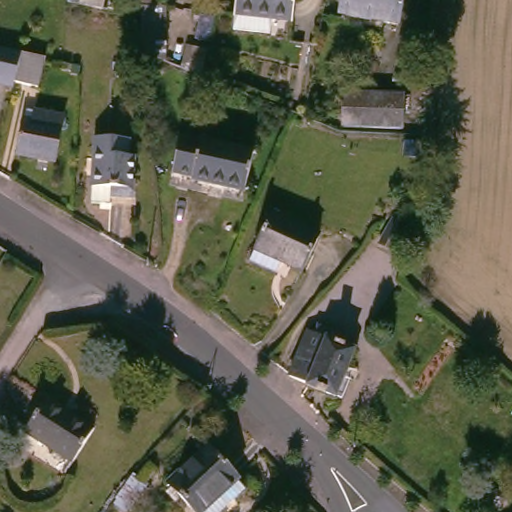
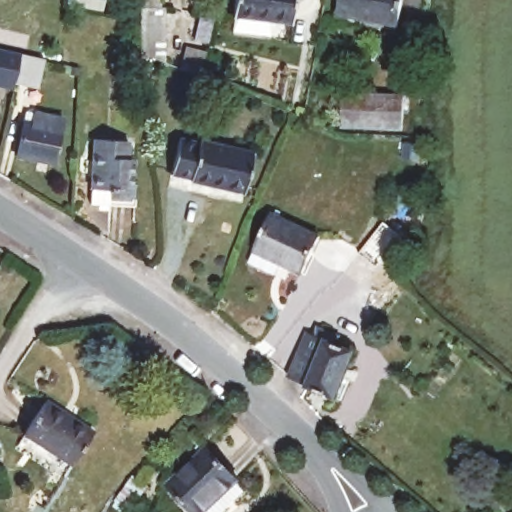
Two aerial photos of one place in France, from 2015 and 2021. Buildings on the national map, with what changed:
unchanged [(232,17),(233,0),(294,0),(291,24),(270,22),(267,37),(233,32),(231,32),(232,17)]
unchanged [(341,15),(343,0),(404,0),(398,26),(341,15)]
unchanged [(169,4),(167,64),(144,54),(144,21),(144,2),(169,4)]
unchanged [(35,87),(12,82),(19,54),(42,58),(35,87)]
unchanged [(134,79),(120,77),(120,72),(121,62),(135,63),(134,74),(134,79)]
unchanged [(401,102),(399,135),(338,132),(340,99),(401,102)]
unchanged [(51,164),(17,155),(24,120),(32,122),(36,111),(62,117),(51,164)]
unchanged [(202,140),(203,137),(255,159),(239,197),(187,176),(188,174),(170,166),(184,132),(202,140)]
unchanged [(90,205),(91,189),(93,140),(126,142),(126,159),(131,159),(129,200),(107,199),(107,206),(90,205)]
unchanged [(318,243),(298,280),(276,267),(268,281),(245,267),(273,217),(318,243)]
unchanged [(333,346),(354,355),(333,402),(306,390),(307,387),(289,379),(309,335),(315,337),(319,328),(337,337),(333,346)]
unchanged [(61,476),(14,443),(44,397),(92,431),(61,476)]
unchanged [(217,512),(187,512),(161,485),(201,447),(241,491),(217,512)]

